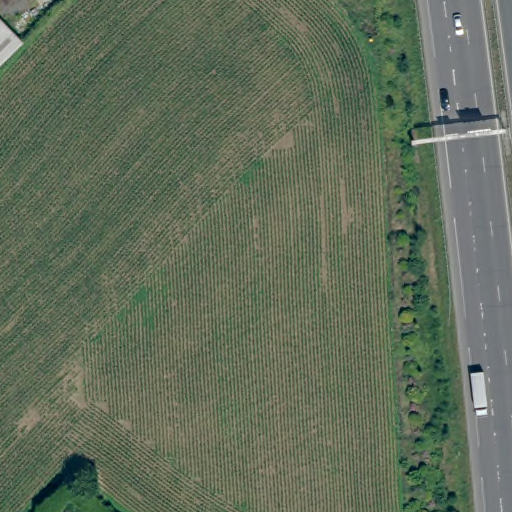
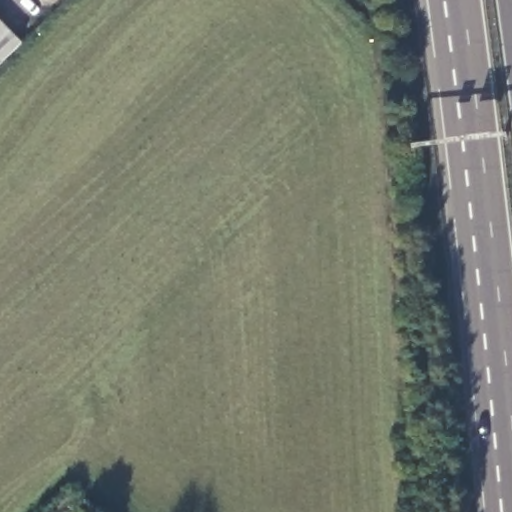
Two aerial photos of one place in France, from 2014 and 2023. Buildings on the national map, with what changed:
unchanged [(0,65),(0,18),(23,42),(0,65)]

